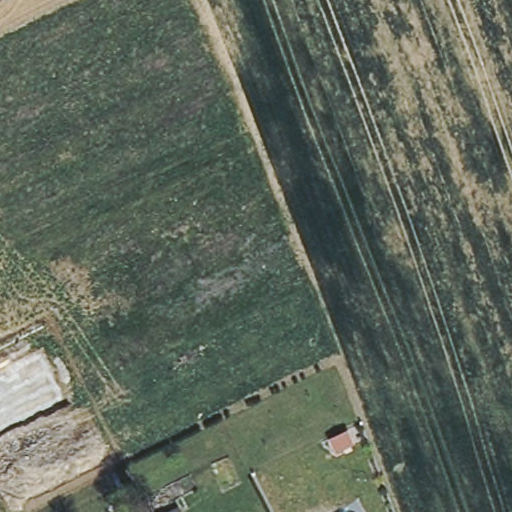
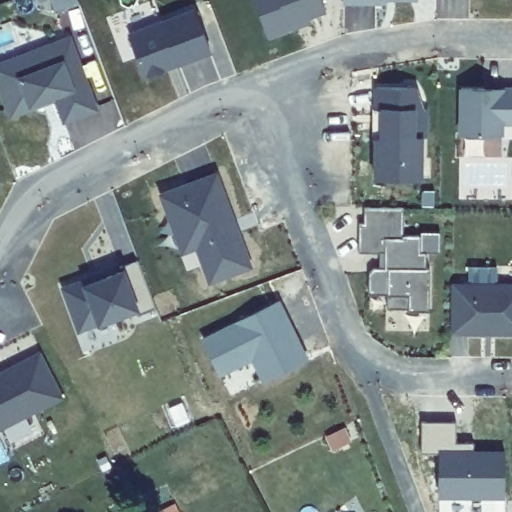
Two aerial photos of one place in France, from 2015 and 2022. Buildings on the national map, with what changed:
new [(327,10),(310,16),(311,23),(269,38),(254,0),(323,0),(327,10)]
new [(382,3),(343,3),(343,0),(381,0),(382,3)]
new [(212,52),(179,65),(177,62),(144,77),(127,31),(160,18),(194,6),(212,52)]
new [(99,109),(62,124),(55,98),(29,108),(9,118),(0,94),(0,61),(71,34),(99,109)]
new [(422,98),(423,106),(430,107),(430,140),(425,136),(424,179),(372,180),(373,138),(372,140),(372,108),(374,108),(374,85),(417,86),(422,98)]
new [(512,85),(512,123),(503,122),(504,137),(457,137),(458,86),(505,85),(512,85)]
new [(234,221),(237,230),(251,266),(210,282),(185,218),(172,223),(160,194),(216,173),(234,221)]
new [(402,237),(420,237),(420,253),(425,253),(426,268),(430,268),(429,310),(408,310),(408,307),(387,307),(387,293),(369,293),(369,270),(374,266),(379,266),(379,252),(359,252),(359,221),(365,222),(364,206),(402,207),(402,237)]
new [(185,218),(197,247),(182,252),(172,223),(185,218)]
new [(156,309),(140,315),(140,310),(97,325),(96,322),(77,332),(60,286),(102,270),(104,275),(120,270),(118,266),(137,260),(156,309)]
new [(512,334),(450,333),(451,281),(512,283),(512,334)]
new [(310,359),(262,382),(252,361),(219,377),(200,339),(280,300),(310,359)]
new [(65,398),(0,430),(0,372),(40,351),(65,398)]

